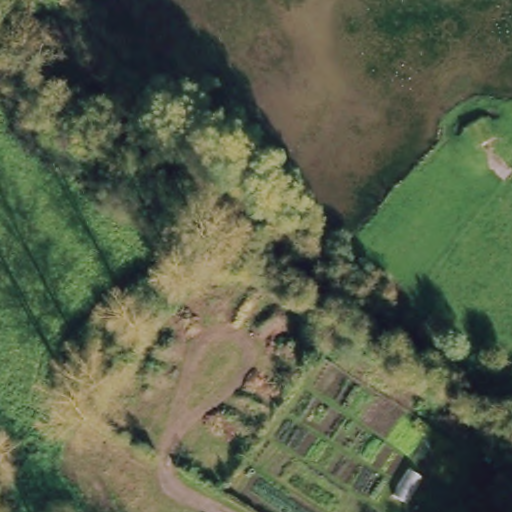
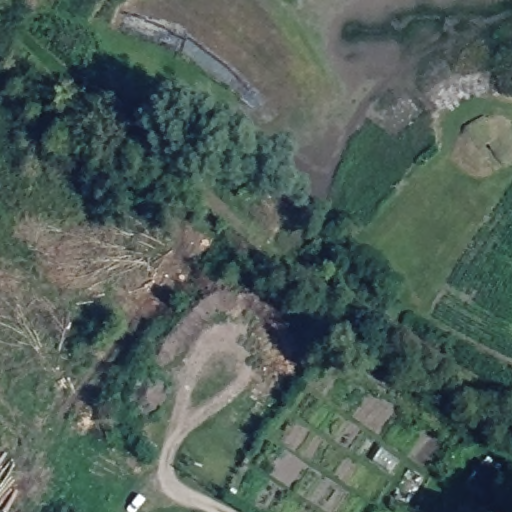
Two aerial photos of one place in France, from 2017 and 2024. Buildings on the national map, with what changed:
unchanged [(466,483),(480,462),(498,476),(483,498),(466,483)]

